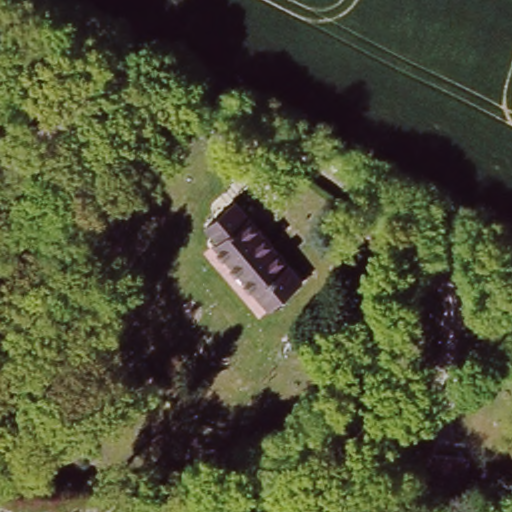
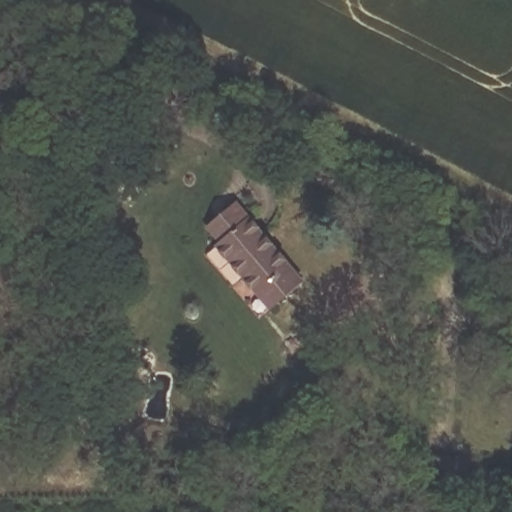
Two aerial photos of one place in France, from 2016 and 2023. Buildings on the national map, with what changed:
unchanged [(308,272),(266,309),(205,240),(219,227),(210,216),(226,203),(235,213),(246,203),(308,272)]
unchanged [(471,453),(469,489),(425,487),(435,447),(471,453)]

